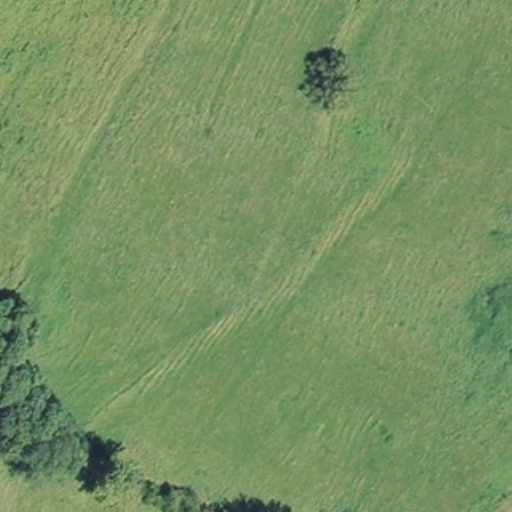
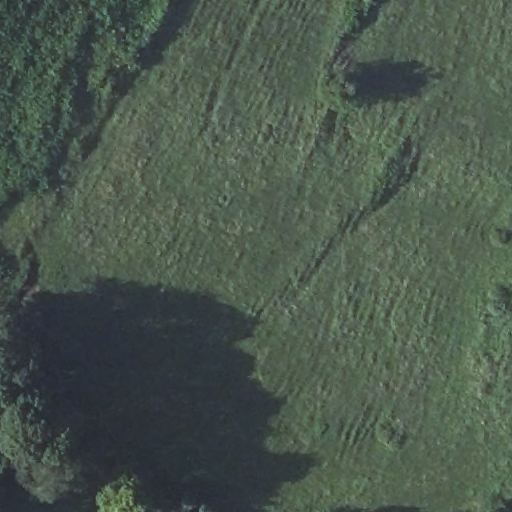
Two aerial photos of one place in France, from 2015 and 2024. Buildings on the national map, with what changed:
[]

